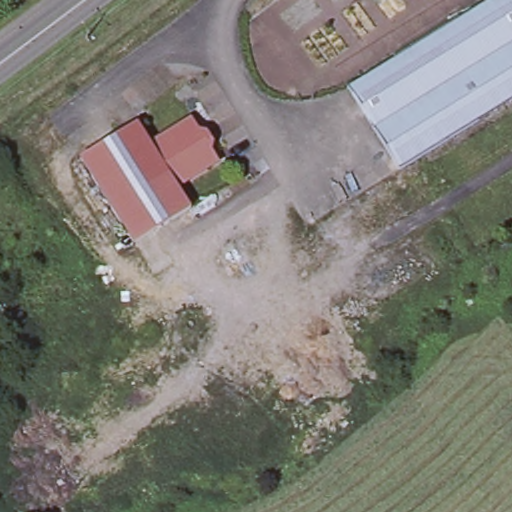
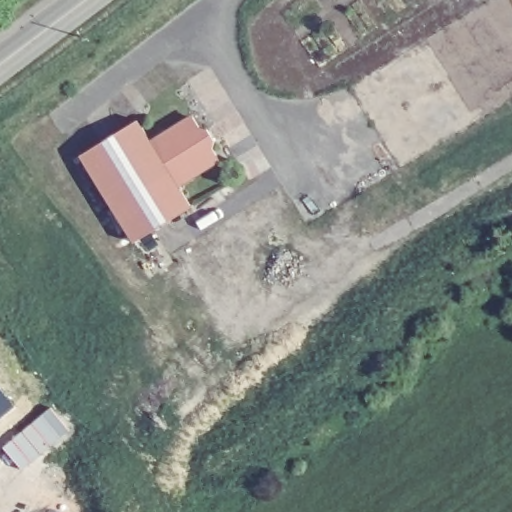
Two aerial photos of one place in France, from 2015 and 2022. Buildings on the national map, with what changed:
demolished [(399,169),(348,86),(488,0),(512,0),(512,100),(399,169)]
unchanged [(192,121),(199,132),(207,133),(214,145),(212,153),(218,163),(177,189),(151,147),(192,121)]
unchanged [(177,189),(191,212),(134,247),(80,160),(137,124),(151,147),(177,189)]
new [(0,419),(0,392),(12,408),(0,419)]

